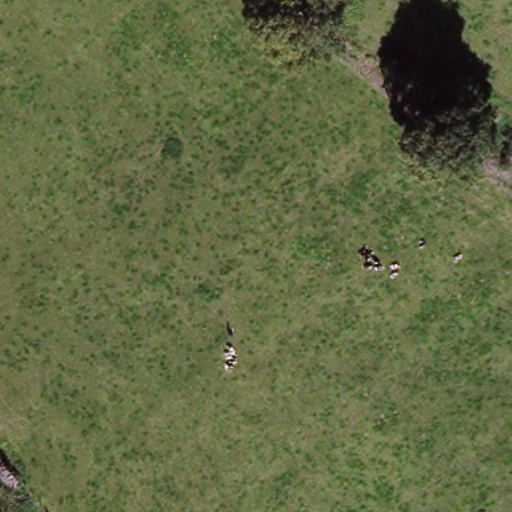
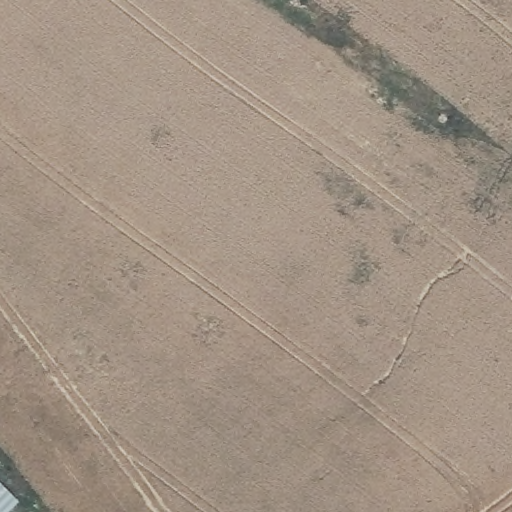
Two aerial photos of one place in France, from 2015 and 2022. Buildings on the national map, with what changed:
new [(19,501),(8,512),(0,512),(0,481),(19,501)]

